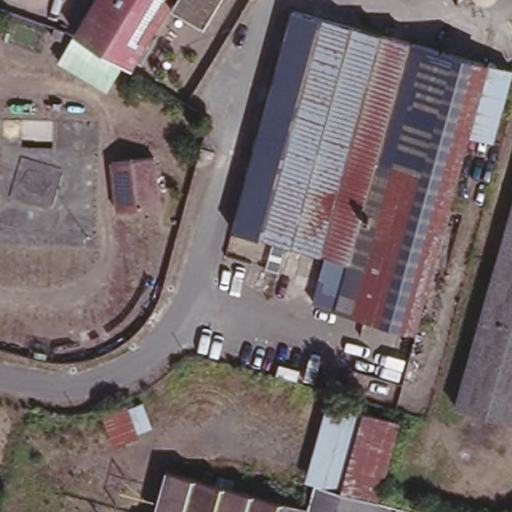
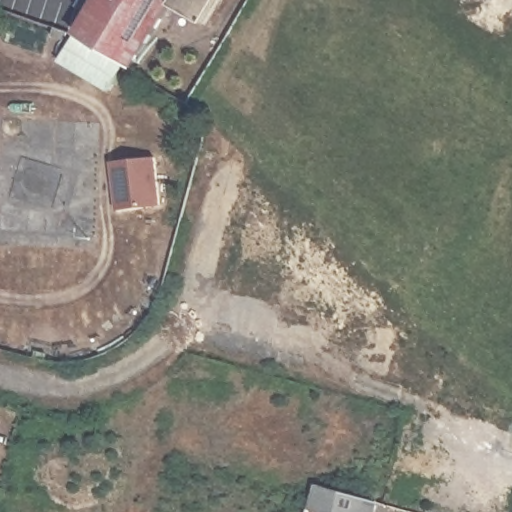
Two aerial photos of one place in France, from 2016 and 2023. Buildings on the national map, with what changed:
unchanged [(74,29),(92,0),(213,0),(201,20),(169,0),(131,63),(74,29)]
demolished [(324,16),(348,24),(509,66),(491,139),(467,131),(412,327),(335,306),(346,258),(283,240),(275,268),(264,265),(273,237),(232,225),(292,9),(324,16)]
unchanged [(111,159),(153,154),(159,203),(116,207),(111,159)]
demolished [(512,204),(512,420),(455,403),(512,204)]
demolished [(304,478),(325,400),(398,420),(376,498),(313,480),(304,478)]
demolished [(305,506),(304,512),(153,512),(165,467),(305,506)]
unchanged [(327,512),(305,506),(313,480),(376,498),(373,512),(327,512)]

